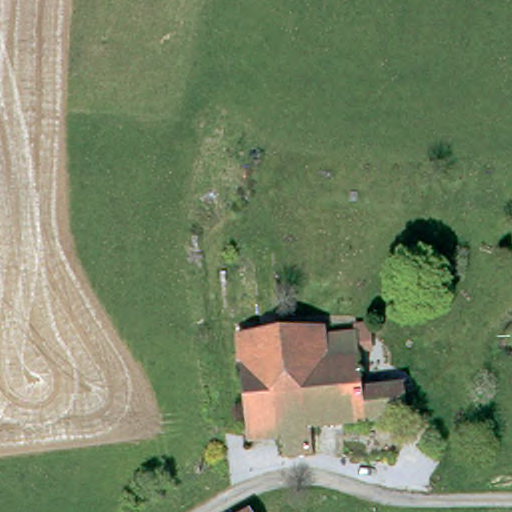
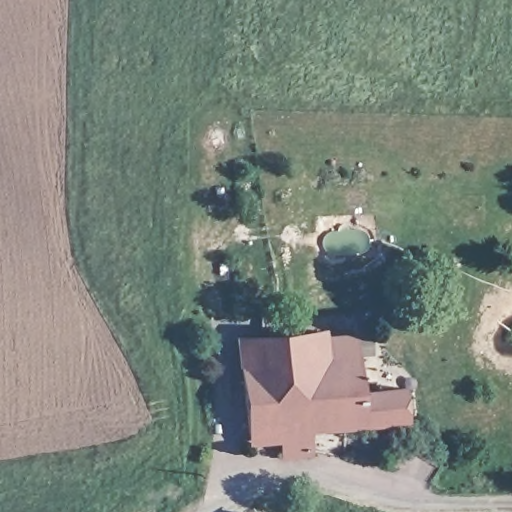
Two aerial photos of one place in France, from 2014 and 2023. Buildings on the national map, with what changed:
unchanged [(300,452),(288,452),(275,458),(273,436),(245,438),(237,340),(290,340),(293,368),(316,369),(317,343),(350,340),(355,390),(396,386),(398,421),(297,431),(300,452)]

